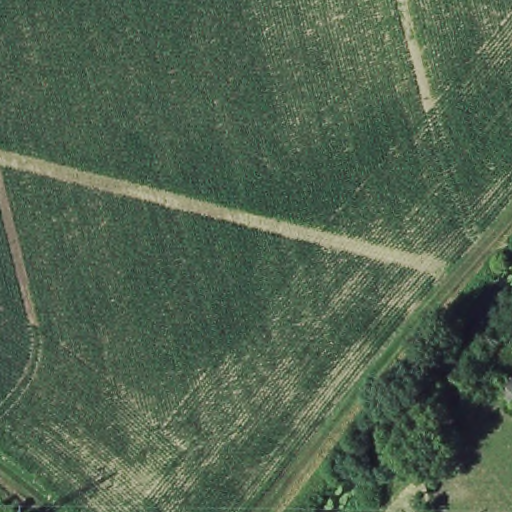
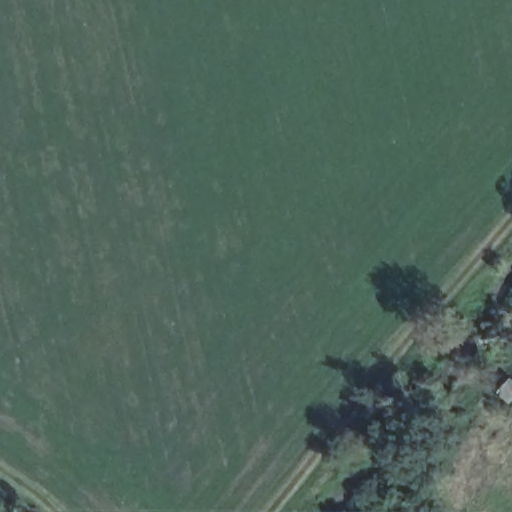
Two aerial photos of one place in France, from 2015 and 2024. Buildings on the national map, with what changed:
unchanged [(508,373),(512,376),(512,397),(499,385),(508,373)]

